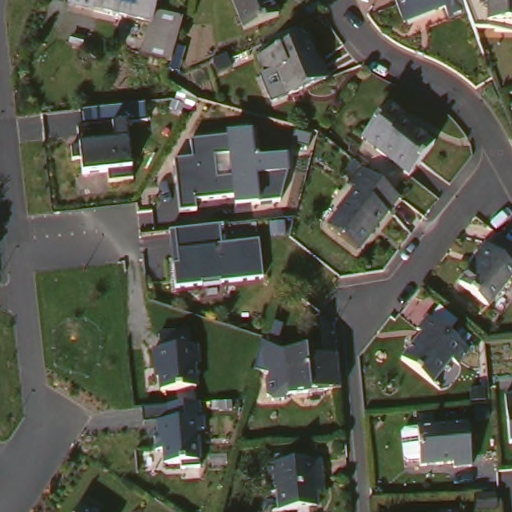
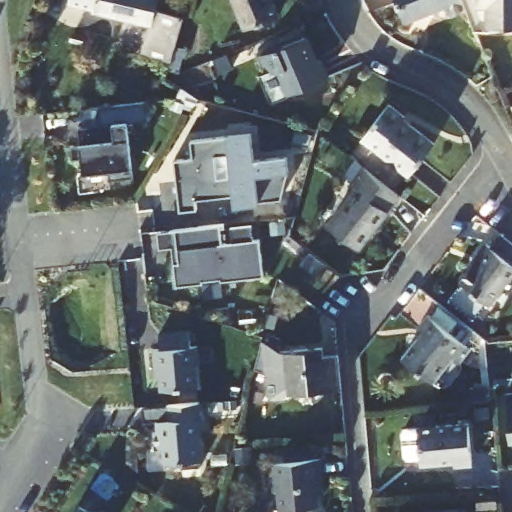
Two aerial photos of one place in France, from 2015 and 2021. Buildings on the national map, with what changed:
unchanged [(186,12),(188,2),(196,5),(182,57),(152,48),(160,20),(82,0),(167,0),(166,6),(186,12)]
unchanged [(260,26),(249,0),(288,0),(293,12),(260,26)]
unchanged [(407,0),(442,0),(445,7),(415,19),(407,0)]
unchanged [(460,14),(456,2),(445,7),(442,0),(473,0),(476,6),(460,14)]
unchanged [(482,20),(476,6),(473,0),(512,0),(512,20),(482,20)]
unchanged [(315,34),(324,57),(328,56),(336,75),(297,90),(288,67),(277,71),(269,51),(315,34)]
unchanged [(418,117),(417,120),(448,145),(425,176),(377,139),(403,105),(418,117)]
unchanged [(81,145),(79,131),(82,130),(82,115),(144,109),(147,123),(128,124),(131,165),(85,170),(81,145)]
unchanged [(192,160),(191,143),(224,137),(254,132),(255,159),(287,156),(290,171),(282,200),(259,202),(258,207),(235,209),(232,195),(195,200),(195,210),(179,211),(176,162),(192,160)]
unchanged [(408,197),(367,250),(337,226),(366,190),(358,184),(371,167),(408,197)]
unchanged [(263,275),(174,285),(169,231),(222,224),(224,245),(261,241),(263,275)]
unchanged [(512,232),(512,286),(500,302),(469,279),(486,256),(483,254),(496,237),(501,241),(510,230),(512,232)]
unchanged [(481,350),(470,365),(460,357),(441,382),(412,360),(432,335),(427,331),(438,317),(481,350)]
unchanged [(291,335),(292,347),(332,343),(333,352),(348,351),(351,385),(298,388),(293,395),(283,396),(277,390),(275,377),(278,369),(265,365),(274,331),(291,335)]
unchanged [(161,347),(161,337),(181,337),(185,349),(195,350),(194,387),(156,390),(155,350),(161,347)]
unchanged [(161,422),(142,423),(142,410),(202,405),(203,429),(197,430),(200,463),(164,466),(161,422)]
unchanged [(477,418),(482,459),(465,461),(465,457),(431,460),(427,423),(477,418)]
unchanged [(330,460),(332,493),(326,493),(327,507),(289,510),(288,493),(280,494),(277,463),(330,460)]
unchanged [(495,495),(497,510),(477,511),(476,495),(495,495)]
unchanged [(409,511),(455,508),(455,502),(472,501),(472,512),(409,512),(409,511)]
unchanged [(82,506),(90,512),(78,512),(82,506)]

